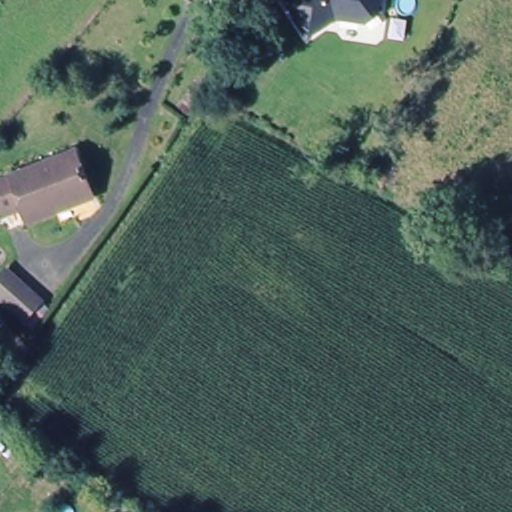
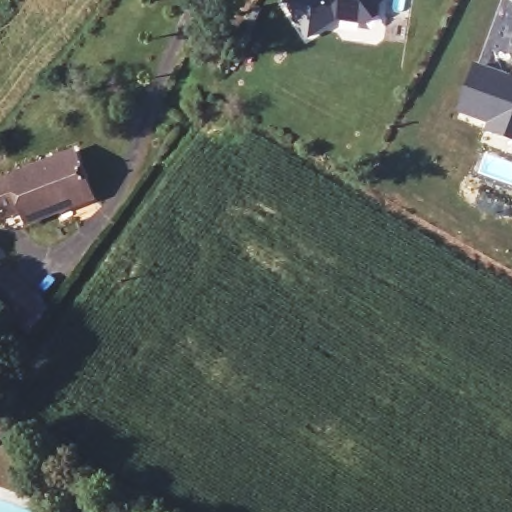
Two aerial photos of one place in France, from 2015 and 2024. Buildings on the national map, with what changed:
unchanged [(377,9),(376,20),(369,27),(336,24),(312,39),(297,21),(300,18),(290,4),(295,0),(385,0),(384,7),(377,9)]
new [(489,126),(492,118),(461,107),(477,63),(510,74),(512,69),(512,134),(510,134),(489,126)]
unchanged [(91,200),(20,226),(14,213),(0,217),(0,176),(71,150),(91,200)]
unchanged [(19,323),(0,305),(0,271),(1,269),(39,301),(19,323)]
unchanged [(0,436),(0,428),(4,432),(0,436)]

